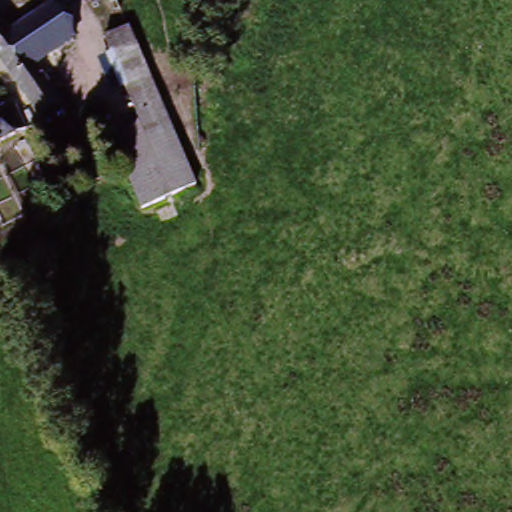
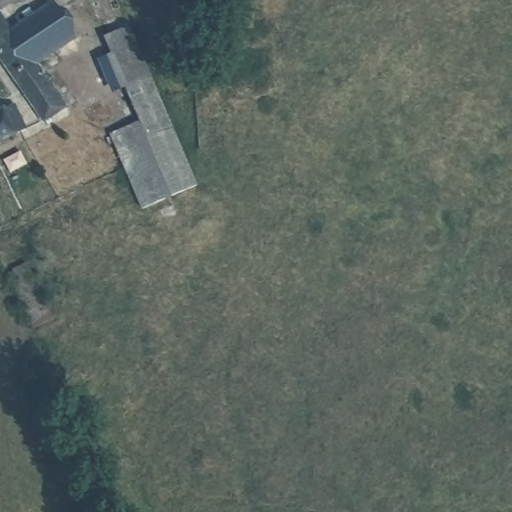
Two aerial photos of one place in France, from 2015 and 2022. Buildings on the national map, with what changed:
unchanged [(50,9),(71,38),(34,64),(65,108),(58,113),(43,123),(0,63),(0,26),(9,38),(50,9)]
unchanged [(125,31),(147,81),(123,94),(100,44),(125,31)]
unchanged [(111,140),(138,125),(133,115),(123,94),(147,81),(154,96),(160,109),(196,185),(145,211),(116,151),(111,140)]
unchanged [(16,137),(12,139),(0,145),(0,114),(3,113),(16,137)]

